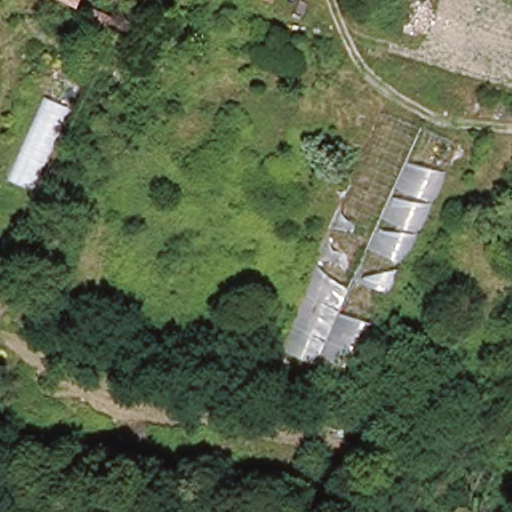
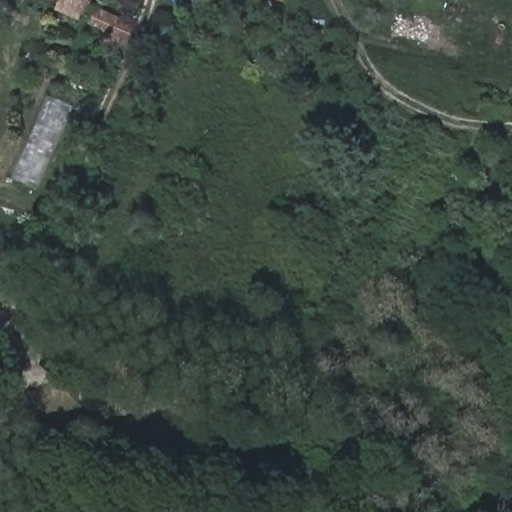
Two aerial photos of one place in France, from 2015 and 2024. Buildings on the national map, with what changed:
unchanged [(74,0),(91,0),(89,6),(74,0)]
unchanged [(268,0),(279,0),(277,4),(268,0)]
unchanged [(137,30),(126,53),(103,45),(106,34),(87,28),(91,13),(137,30)]
unchanged [(60,68),(83,79),(49,164),(23,153),(60,68)]
demolished [(284,345),(386,110),(452,140),(342,373),(284,345)]

